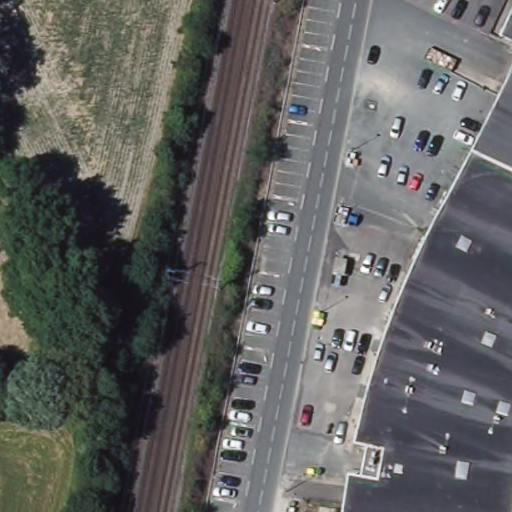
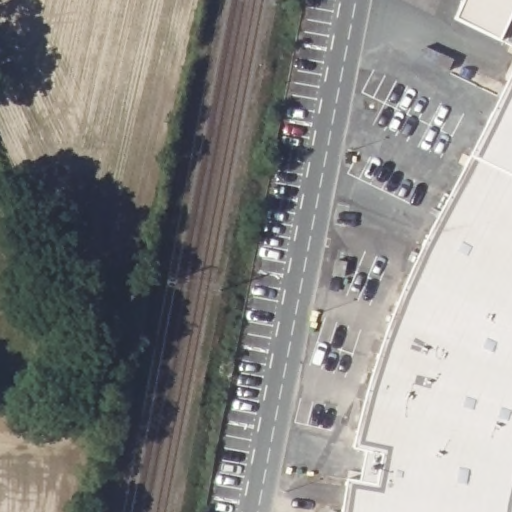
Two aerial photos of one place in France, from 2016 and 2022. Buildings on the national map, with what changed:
new [(463,0),(512,0),(512,15),(501,41),(456,17),(463,0)]
unchanged [(512,15),(512,47),(501,41),(512,15)]
unchanged [(350,463),(361,415),(379,353),(393,318),(429,239),(459,179),(483,134),(512,74),(512,512),(342,512),(350,463)]
unchanged [(337,260),(347,262),(345,277),(334,274),(337,260)]

